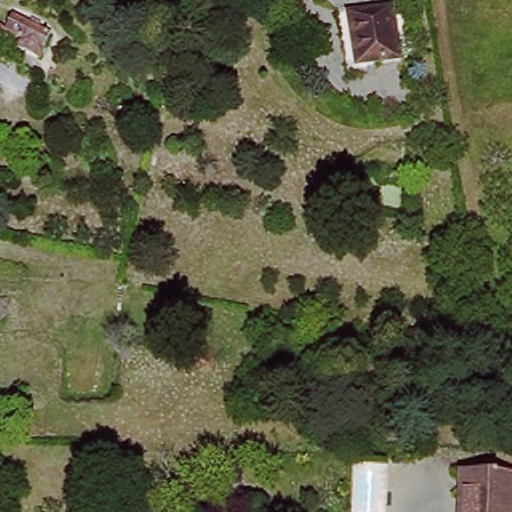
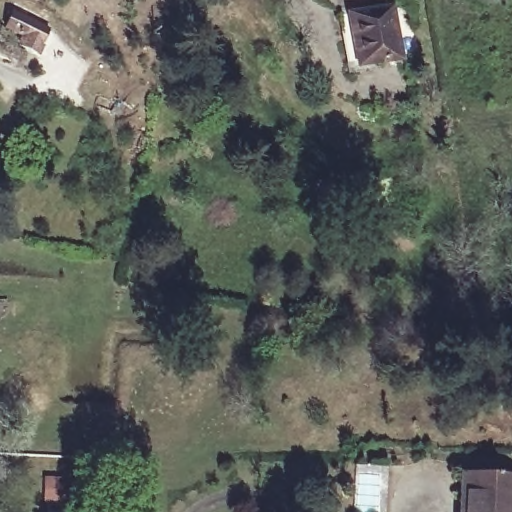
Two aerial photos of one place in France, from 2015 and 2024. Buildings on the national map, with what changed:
unchanged [(402,59),(355,64),(349,12),(396,7),(402,59)]
unchanged [(35,54),(38,42),(20,31),(25,15),(60,31),(50,59),(35,54)]
unchanged [(12,26),(0,53),(0,20),(12,26)]
unchanged [(512,467),(512,512),(467,512),(466,468),(512,467)]

